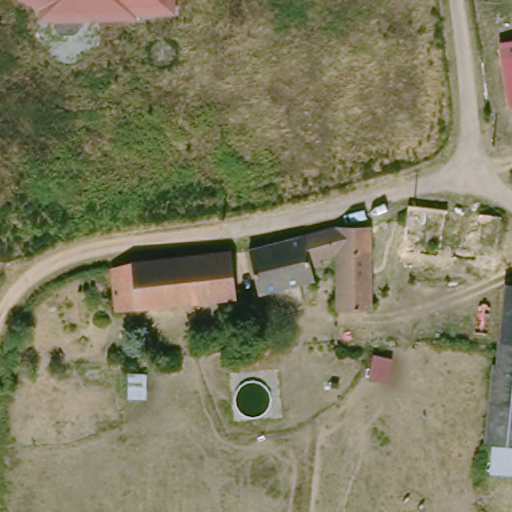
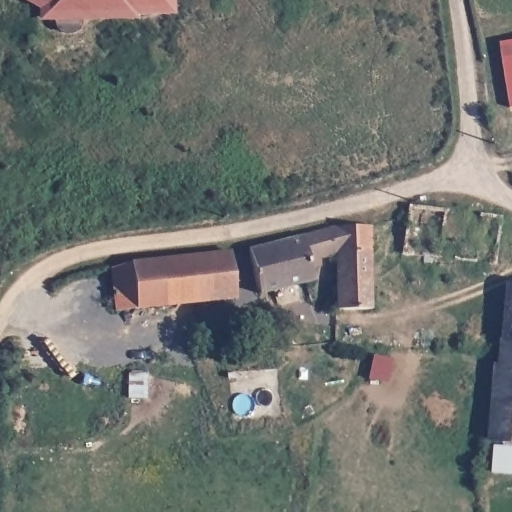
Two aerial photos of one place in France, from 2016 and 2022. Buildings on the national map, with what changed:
unchanged [(58,30),(56,22),(40,22),(40,10),(23,0),(177,0),(177,17),(138,17),(138,22),(82,23),(82,31),(75,36),(62,37),(58,30)]
unchanged [(502,59),(512,57),(512,111),(510,111),(502,59)]
unchanged [(329,310),(328,251),(317,254),(307,256),(310,279),(257,291),(247,249),(273,244),(314,236),(327,233),(365,233),(365,309),(329,310)]
unchanged [(225,294),(105,306),(101,267),(122,260),(177,255),(221,249),(225,294)]
unchanged [(480,434),(490,341),(497,280),(512,281),(512,437),(480,434)]

